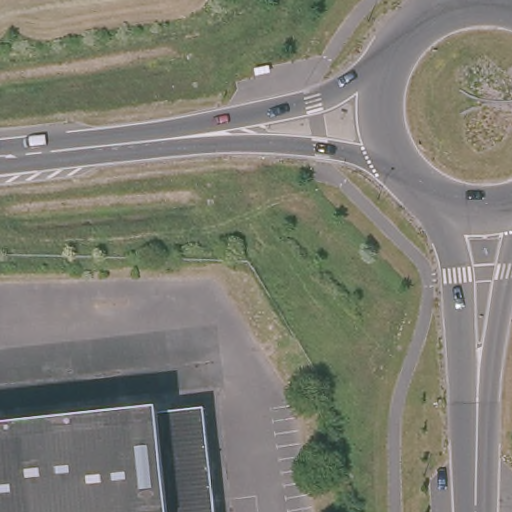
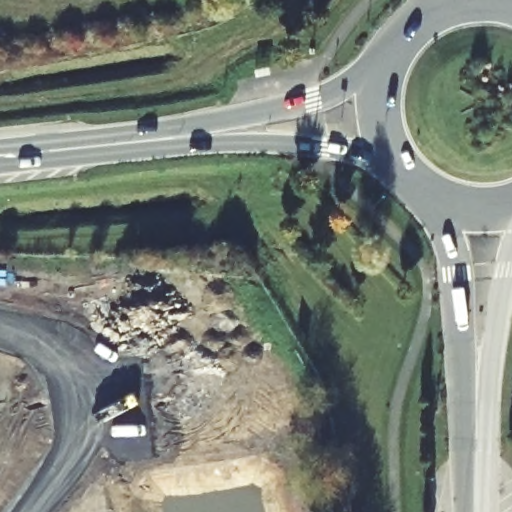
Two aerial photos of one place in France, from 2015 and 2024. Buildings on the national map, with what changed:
demolished [(205,414),(216,512),(0,512),(0,435),(158,418),(205,414)]

